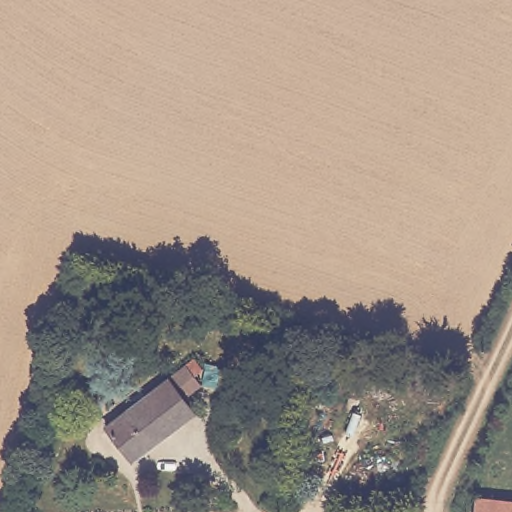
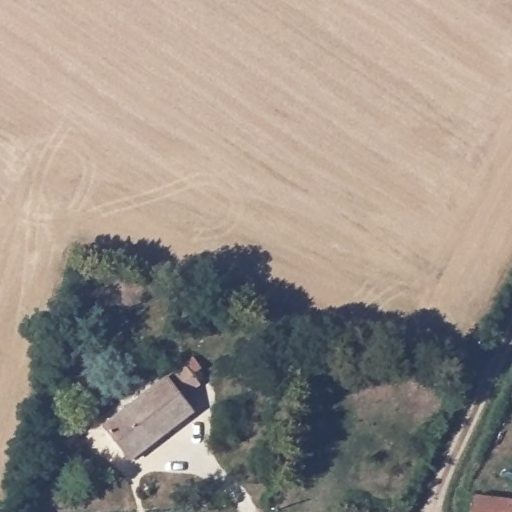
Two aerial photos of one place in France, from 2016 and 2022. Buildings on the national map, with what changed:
unchanged [(159,363),(185,395),(124,444),(98,411),(159,363)]
unchanged [(512,363),(512,368),(510,367),(512,363)]
unchanged [(512,499),(512,512),(469,512),(471,495),(512,499)]

